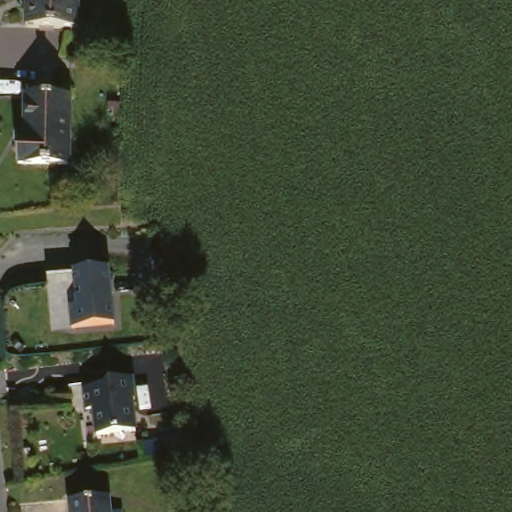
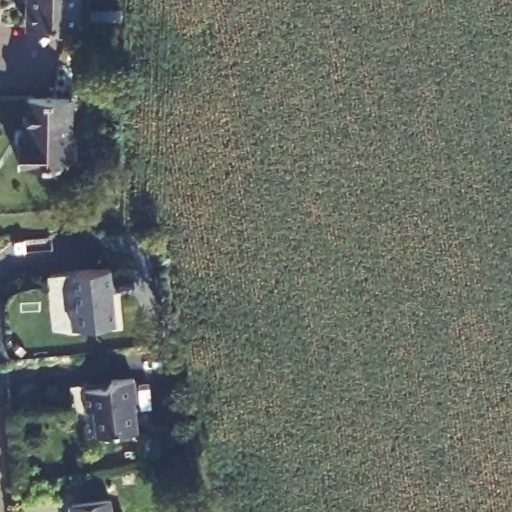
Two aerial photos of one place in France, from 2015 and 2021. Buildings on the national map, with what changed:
unchanged [(85,0),(85,22),(41,21),(33,21),(33,0),(85,0)]
unchanged [(36,128),(37,92),(82,92),(81,160),(29,160),(30,136),(30,128),(36,128)]
unchanged [(119,325),(72,330),(71,271),(113,269),(119,325)]
unchanged [(143,430),(98,432),(96,373),(141,371),(143,430)]
unchanged [(71,503),(111,498),(112,512),(71,512),(71,503)]
unchanged [(123,512),(118,512),(123,511),(123,512)]

